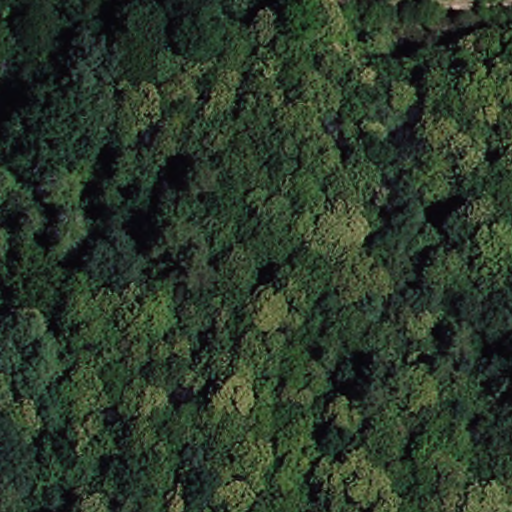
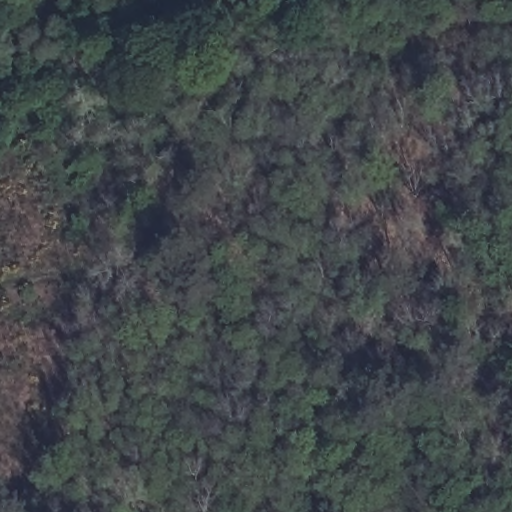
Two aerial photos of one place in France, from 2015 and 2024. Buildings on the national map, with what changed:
[]

